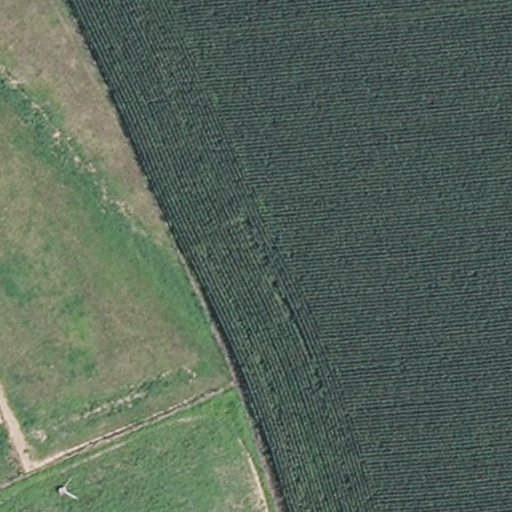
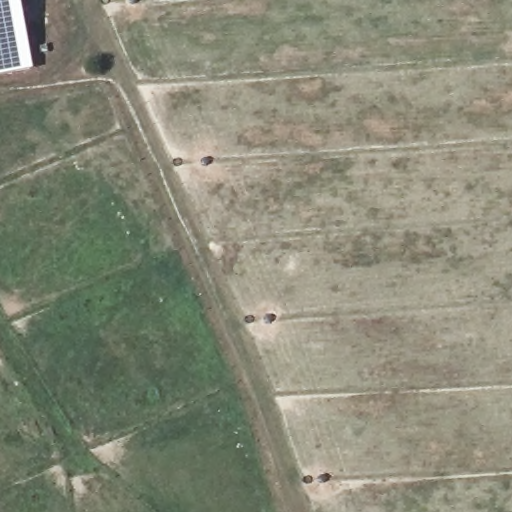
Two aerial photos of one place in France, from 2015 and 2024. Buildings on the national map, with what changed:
new [(0,82),(0,0),(23,0),(38,75),(0,82)]

